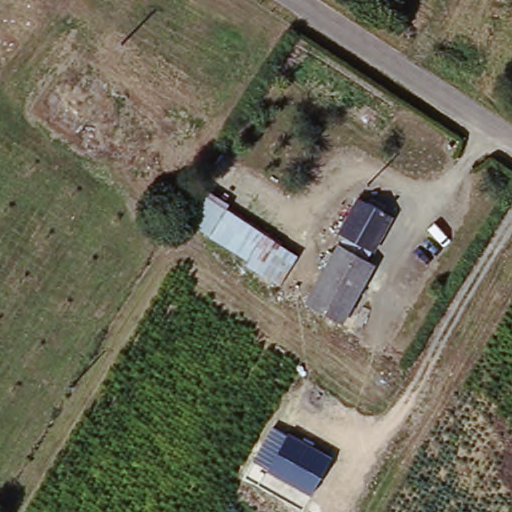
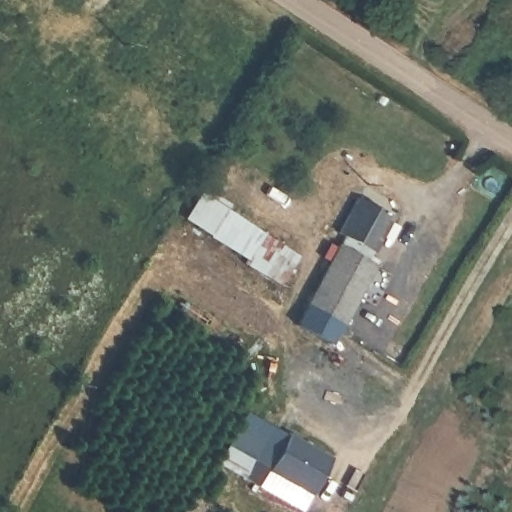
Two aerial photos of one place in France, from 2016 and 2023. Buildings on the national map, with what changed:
unchanged [(257,269),(184,223),(201,193),(273,242),(257,269)]
unchanged [(393,221),(370,260),(377,265),(342,327),(304,306),(344,241),(335,235),(353,201),(393,221)]
unchanged [(288,433),(332,456),(312,494),(267,471),(288,433)]

